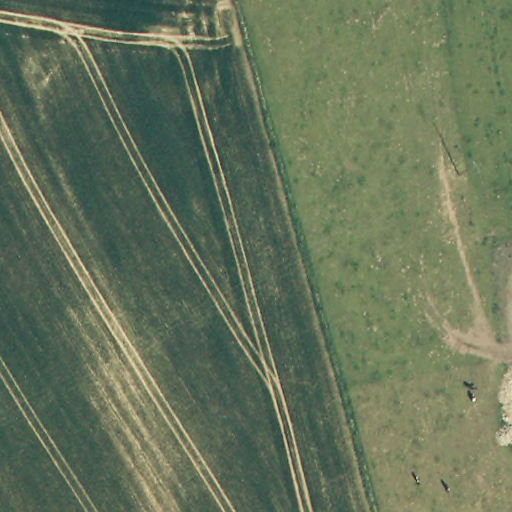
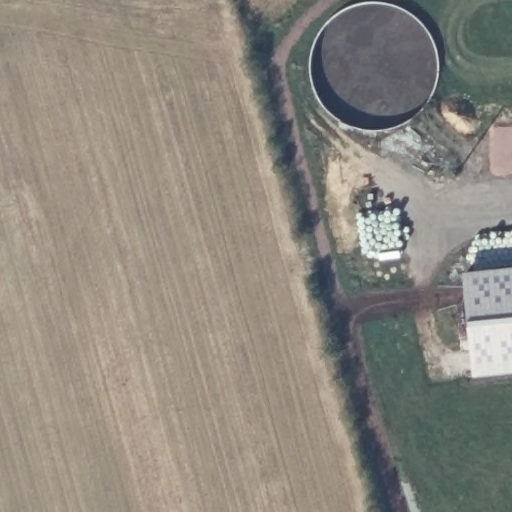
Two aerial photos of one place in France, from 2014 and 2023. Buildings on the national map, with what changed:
new [(474,378),(463,273),(512,268),(512,374),(474,378)]

